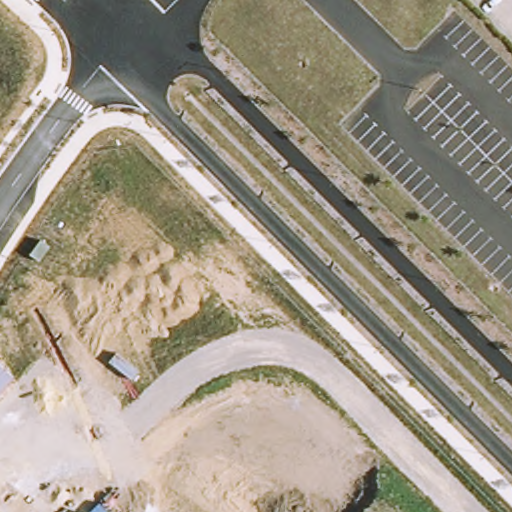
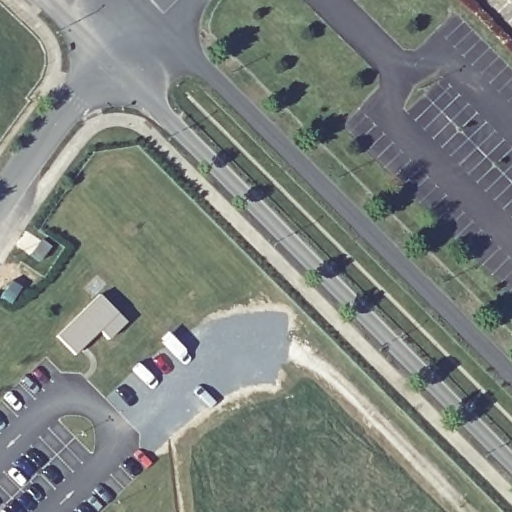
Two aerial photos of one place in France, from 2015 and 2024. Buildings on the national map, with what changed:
new [(99,295),(125,321),(108,338),(98,329),(72,355),(57,336),(99,295)]

